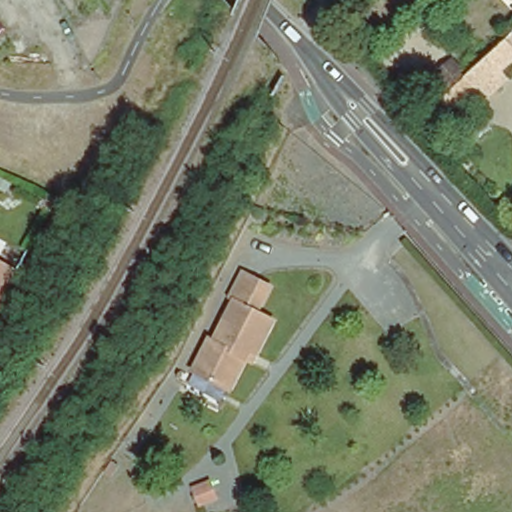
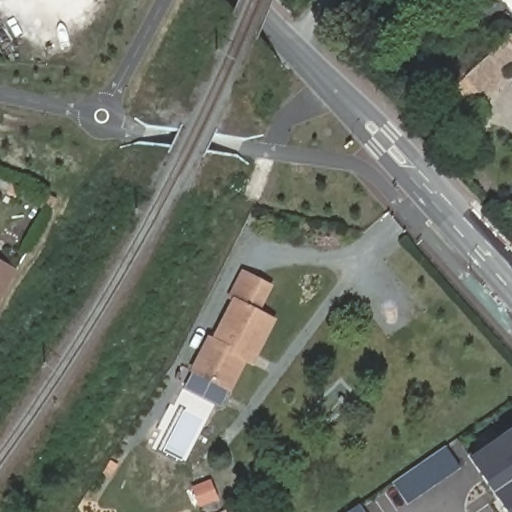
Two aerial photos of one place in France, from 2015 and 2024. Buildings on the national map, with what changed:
unchanged [(512,59),(512,61),(495,77),(501,83),(479,104),(458,82),(483,57),(497,44),(512,59)]
unchanged [(0,264),(18,274),(0,306),(0,264)]
unchanged [(243,355),(229,385),(192,367),(206,336),(210,337),(230,297),(226,295),(239,267),(266,281),(254,308),(271,317),(255,352),(252,359),(243,355)]
new [(493,493),(486,483),(469,459),(467,456),(512,425),(512,512),(506,512),(494,496),(493,493)]
new [(460,468),(406,505),(391,482),(445,446),(460,468)]

